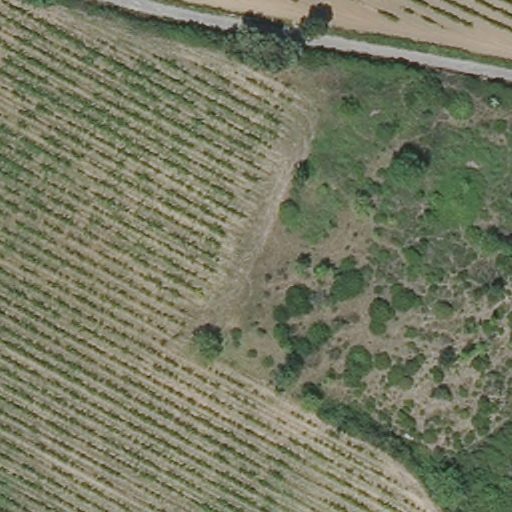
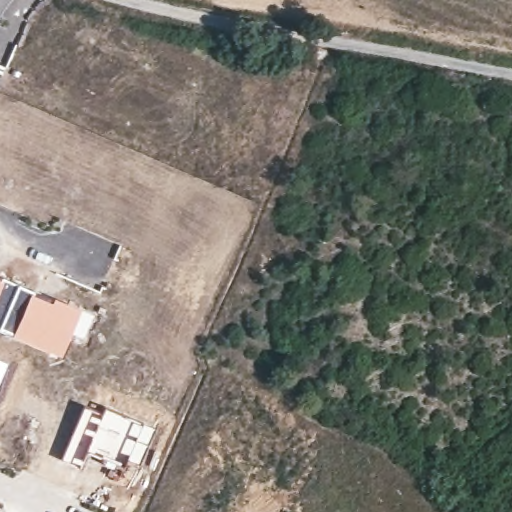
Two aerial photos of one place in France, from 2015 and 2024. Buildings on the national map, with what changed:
new [(61,357),(11,335),(0,330),(0,275),(18,284),(31,290),(84,309),(73,333),(61,357)]
new [(0,385),(0,359),(9,363),(0,385)]
new [(101,412),(105,405),(141,419),(141,421),(154,426),(138,462),(128,458),(124,465),(86,450),(79,466),(60,457),(83,404),(101,412)]

